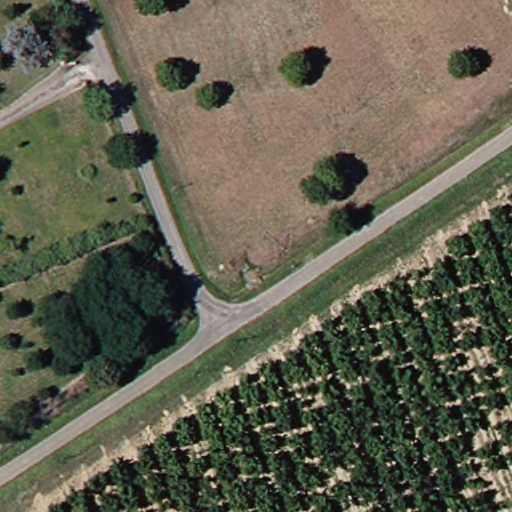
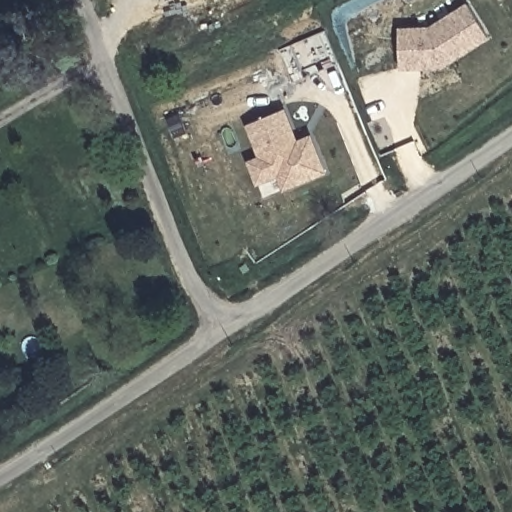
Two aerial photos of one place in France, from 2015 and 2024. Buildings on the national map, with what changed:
new [(432,30),(468,5),(489,37),(444,67),(401,69),(400,30),(432,30)]
new [(247,127),(283,112),(299,149),(313,144),(324,171),(284,189),(278,175),(274,177),(258,184),(249,162),(260,158),(262,161),(247,127)]
new [(309,137),(313,144),(299,149),(296,142),(309,137)]

